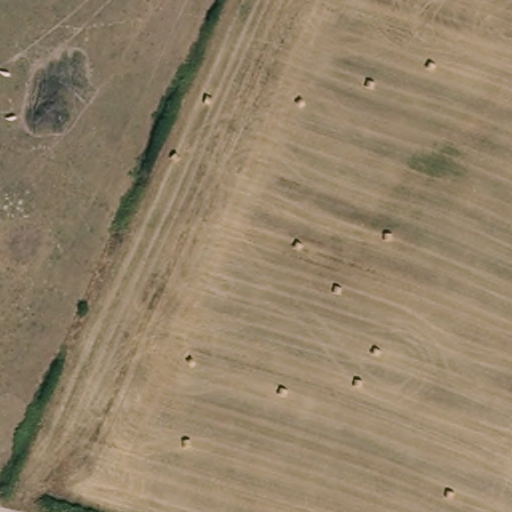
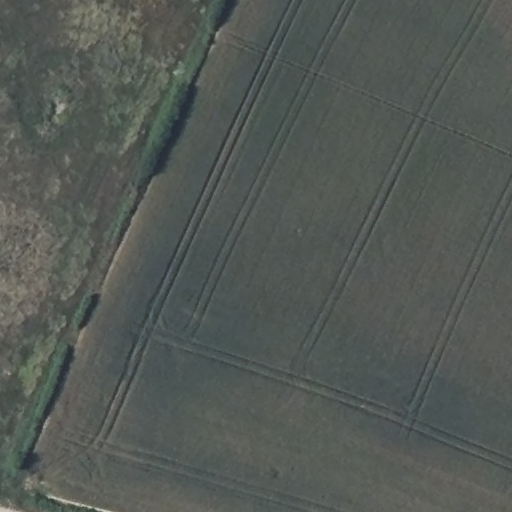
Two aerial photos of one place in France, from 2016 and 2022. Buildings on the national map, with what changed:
[]

